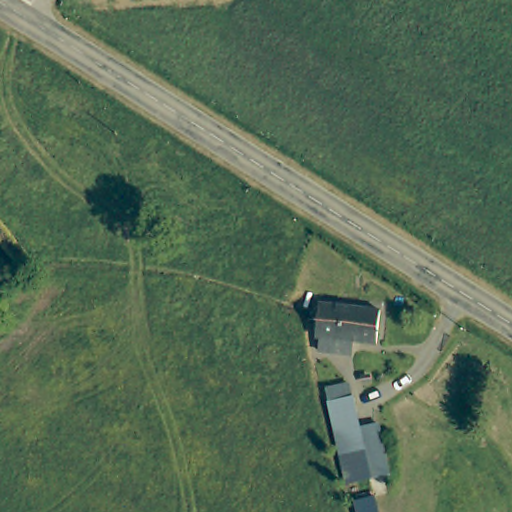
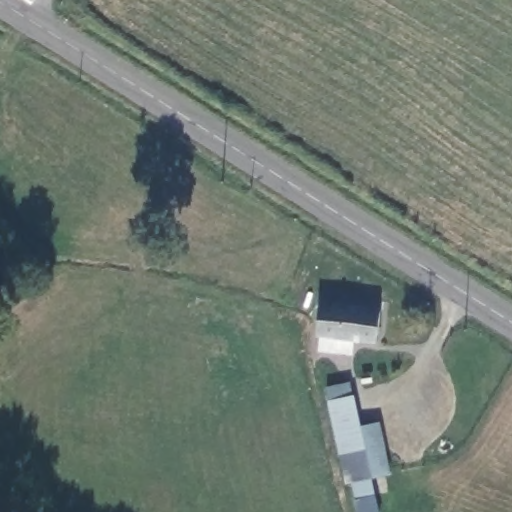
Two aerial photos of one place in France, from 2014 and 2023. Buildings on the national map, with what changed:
unchanged [(325,345),(327,332),(322,332),(324,301),(382,304),(379,336),(358,334),(357,348),(325,345)]
unchanged [(364,443),(343,450),(333,405),(329,388),(350,381),(354,398),(361,427),(364,443)]
unchanged [(379,423),(382,438),(390,473),(351,482),(343,450),(364,443),(361,427),(379,423)]

